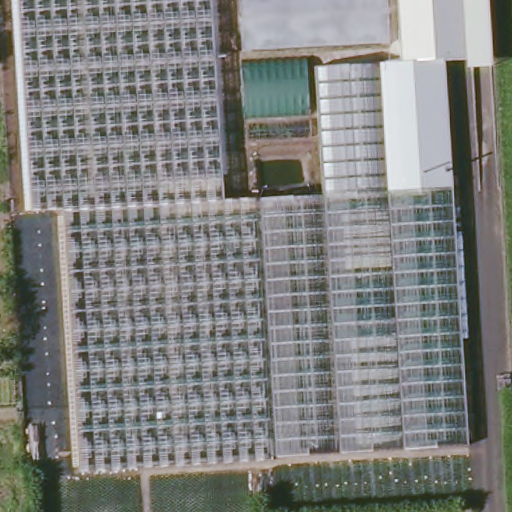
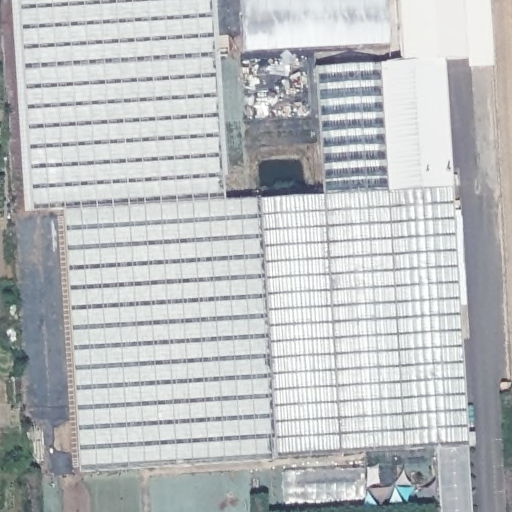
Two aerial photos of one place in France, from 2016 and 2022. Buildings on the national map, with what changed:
unchanged [(321,195),(313,66),(377,62),(387,189),(450,186),(465,442),(79,470),(61,206),(30,207),(17,0),(210,0),(222,200),(321,195)]
unchanged [(390,39),(243,49),(239,0),(386,0),(390,39)]
unchanged [(490,63),(466,65),(465,55),(442,56),(450,186),(387,189),(377,62),(400,60),(396,0),(486,0),(490,63)]
unchanged [(311,111),(242,116),(239,65),(305,61),(311,111)]

